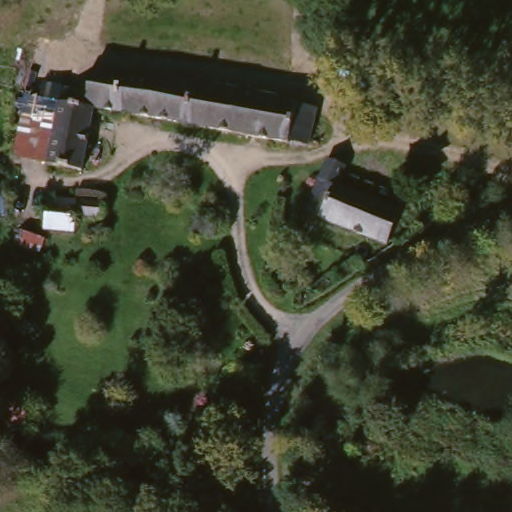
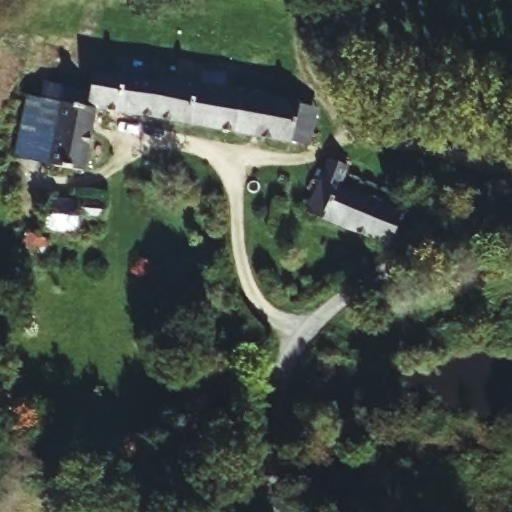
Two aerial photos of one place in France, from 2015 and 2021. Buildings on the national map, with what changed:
unchanged [(310,142),(291,139),(290,144),(95,108),(84,172),(47,164),(60,106),(62,89),(64,89),(87,93),(91,71),(129,79),(159,85),(159,78),(194,84),(241,93),(297,103),(296,109),(315,112),(310,142)]
unchanged [(15,157),(28,100),(60,106),(47,164),(15,157)]
unchanged [(401,247),(317,212),(340,159),(360,167),(356,172),(352,182),(417,208),(401,247)]
unchanged [(103,202),(104,216),(77,216),(76,231),(46,230),(49,198),(103,202)]
unchanged [(20,231),(45,239),(40,252),(19,244),(20,231)]

